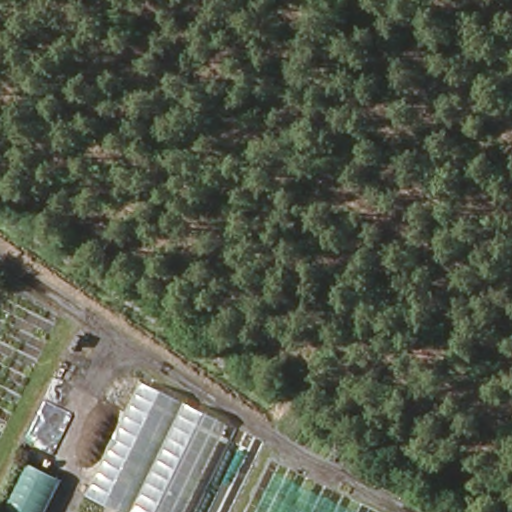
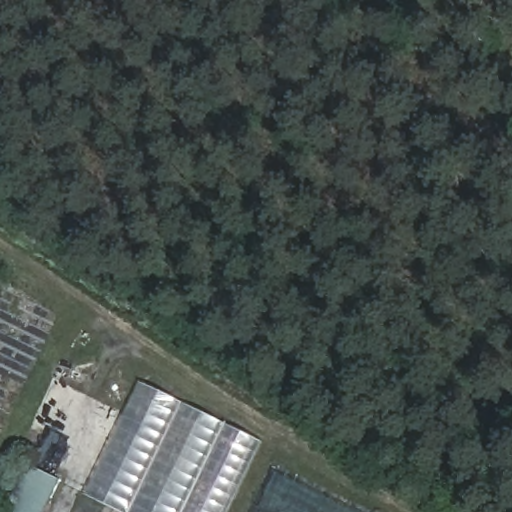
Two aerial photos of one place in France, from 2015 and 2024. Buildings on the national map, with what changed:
unchanged [(220,512),(124,512),(88,496),(142,383),(252,443),(220,512)]
unchanged [(55,512),(0,512),(27,458),(70,480),(55,512)]

